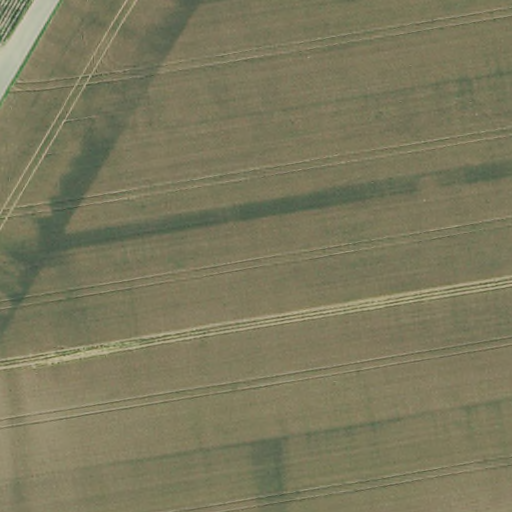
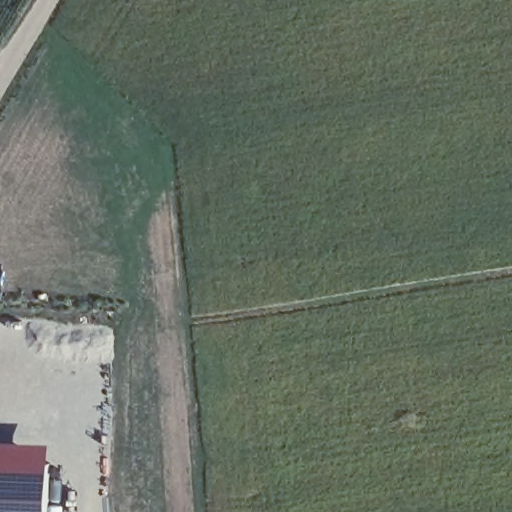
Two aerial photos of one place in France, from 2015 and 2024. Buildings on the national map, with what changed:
new [(43,512),(0,512),(0,439),(46,441),(43,512)]

